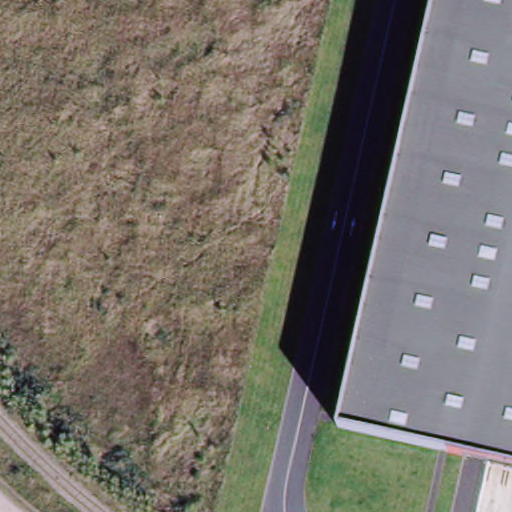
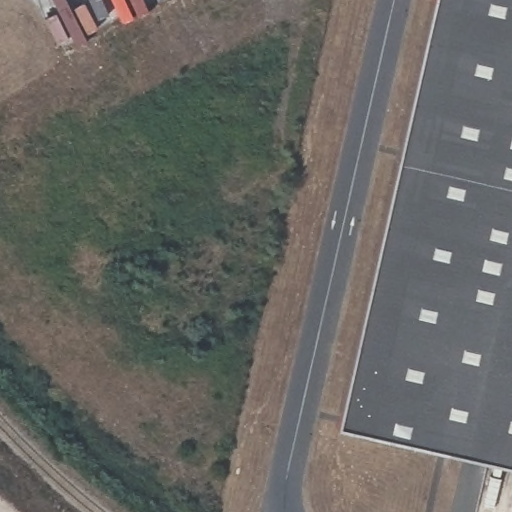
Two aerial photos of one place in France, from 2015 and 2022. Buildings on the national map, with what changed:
unchanged [(434,0),(512,0),(512,466),(338,427),(434,0)]

